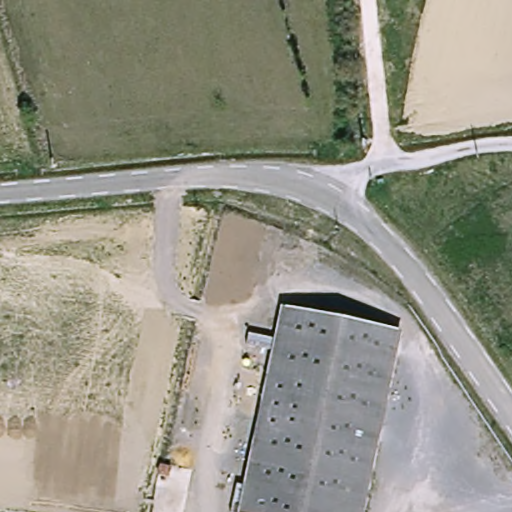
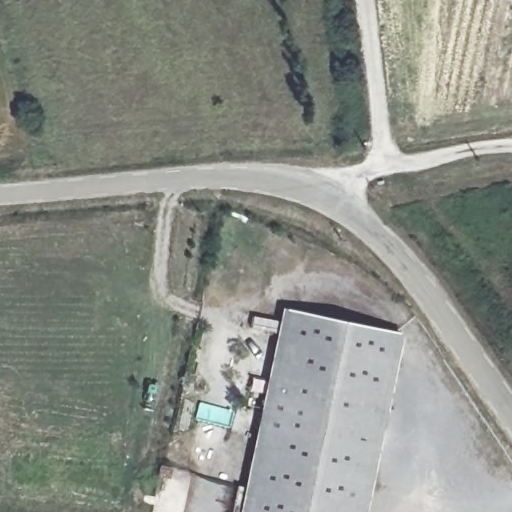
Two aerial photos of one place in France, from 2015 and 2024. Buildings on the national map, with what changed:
unchanged [(350,512),(239,512),(280,315),(386,336),(350,512)]

